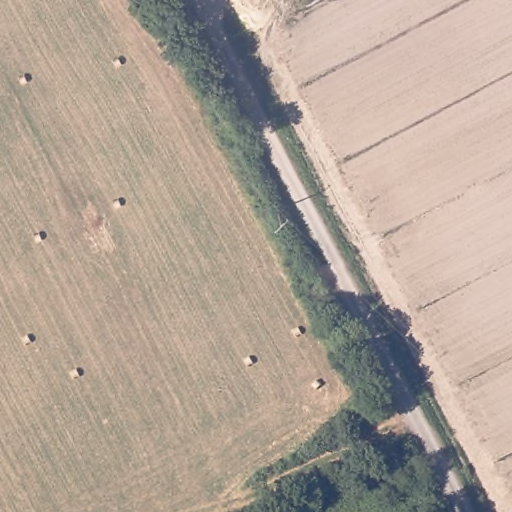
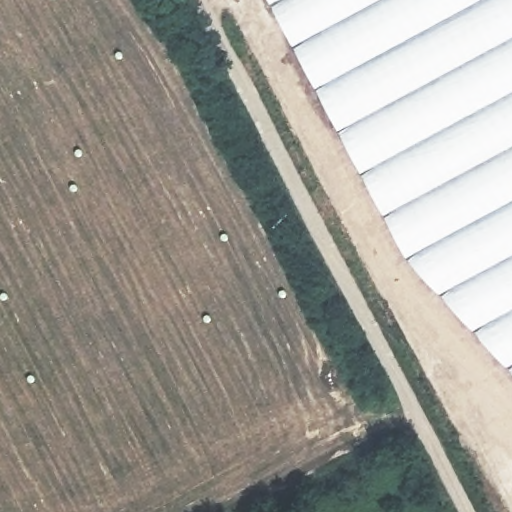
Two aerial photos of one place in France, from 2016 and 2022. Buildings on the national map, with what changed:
new [(512,375),(402,257),(269,0),(512,0),(512,375)]

